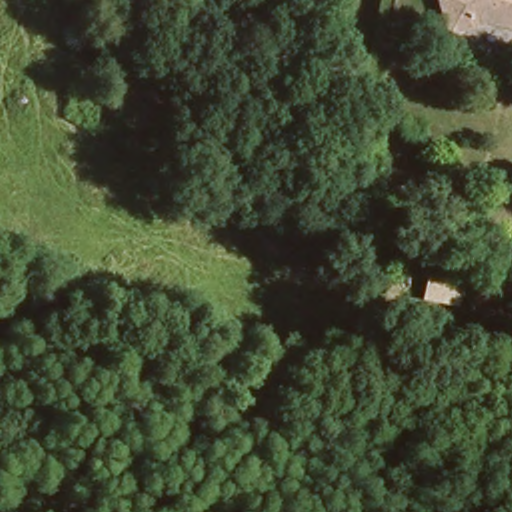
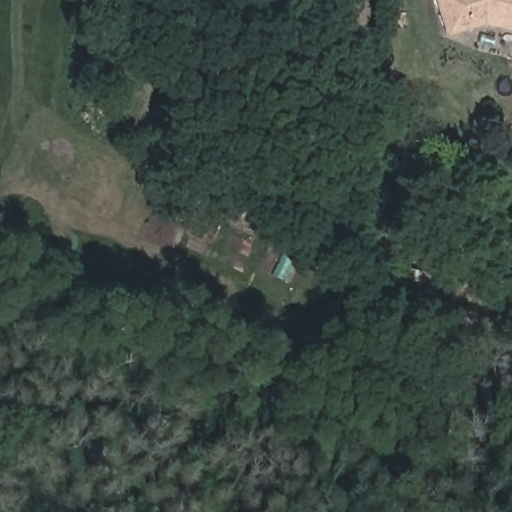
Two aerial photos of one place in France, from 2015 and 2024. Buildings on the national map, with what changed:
unchanged [(485,21),(448,32),(439,0),(512,0),(512,27),(485,21)]
unchanged [(459,288),(454,308),(424,300),(429,280),(459,288)]

